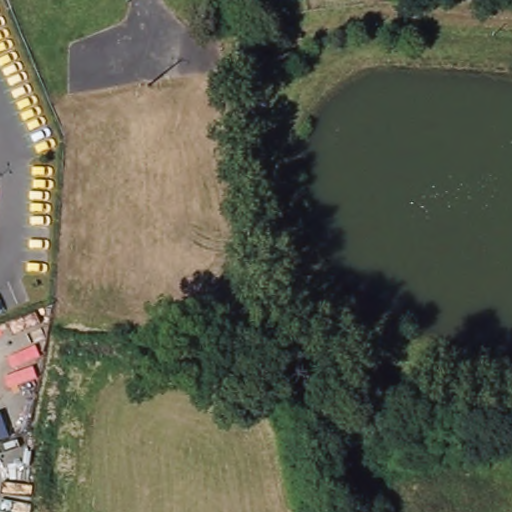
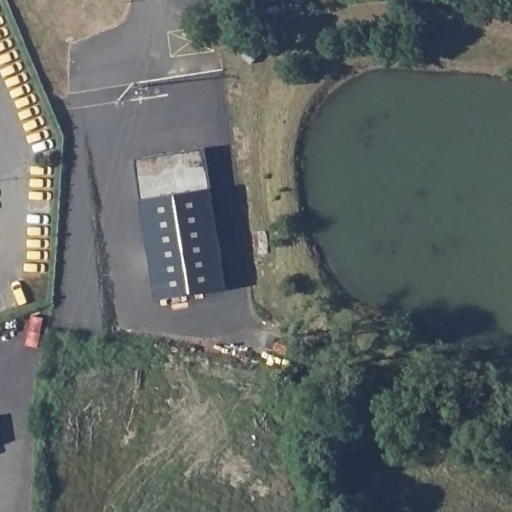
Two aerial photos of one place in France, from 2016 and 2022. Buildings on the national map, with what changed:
unchanged [(244,37),(260,51),(249,63),(233,50),(244,37)]
new [(205,148),(227,289),(157,300),(135,159),(205,148)]
unchanged [(0,441),(0,416),(8,438),(0,441)]

